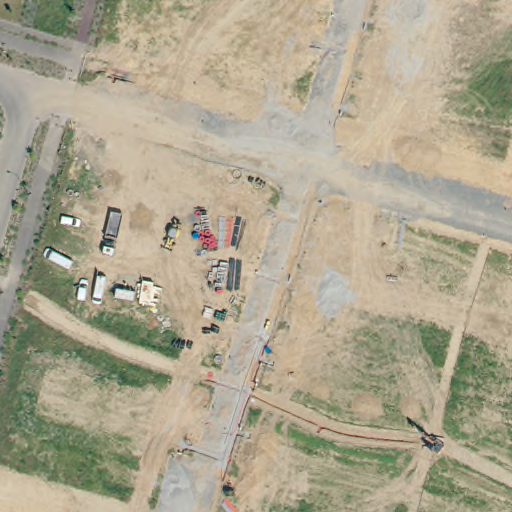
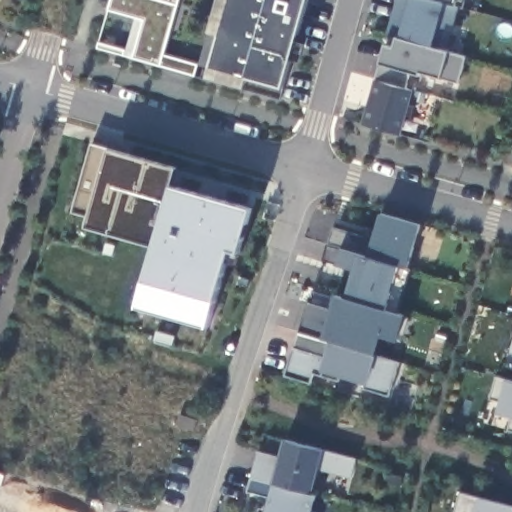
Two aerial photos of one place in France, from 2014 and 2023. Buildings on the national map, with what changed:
new [(165,54),(197,65),(195,76),(161,66),(125,55),(99,47),(100,42),(127,50),(135,17),(109,9),(112,0),(180,0),(165,54)]
new [(284,86),(250,77),(246,87),(210,76),(221,34),(211,32),(220,0),(310,0),(284,86)]
new [(463,7),(458,6),(452,25),(447,23),(440,49),(448,51),(468,56),(460,82),(442,77),(420,72),(420,75),(412,73),(407,89),(413,90),(402,135),(362,124),(380,64),(385,45),(395,46),(397,36),(387,34),(398,0),(466,0),(463,7)]
new [(239,250),(230,247),(216,300),(209,325),(139,305),(146,279),(156,247),(86,226),(89,216),(70,210),(89,142),(111,149),(177,169),(174,186),(250,208),(239,250)]
new [(382,214),(420,224),(405,267),(398,266),(370,257),(382,214)]
new [(328,244),(340,247),(360,253),(398,266),(412,270),(400,313),(407,315),(400,342),(382,337),(377,354),(399,362),(390,395),(363,388),(366,382),(343,376),(341,380),(315,373),(312,382),(286,373),(300,331),(307,301),(331,308),(335,293),(347,296),(355,270),(335,263),(322,259),(328,244)]
unchanged [(512,416),(498,412),(501,402),(490,399),(496,377),(508,380),(512,381),(512,416)]
unchanged [(512,420),(512,429),(509,428),(512,420)]
new [(281,456),(285,439),(323,448),(357,457),(353,478),(319,470),(313,493),(318,494),(313,512),(267,512),(272,496),(248,491),(260,451),(281,456)]
new [(512,505),(512,512),(457,512),(462,492),(480,497),(512,505)]

